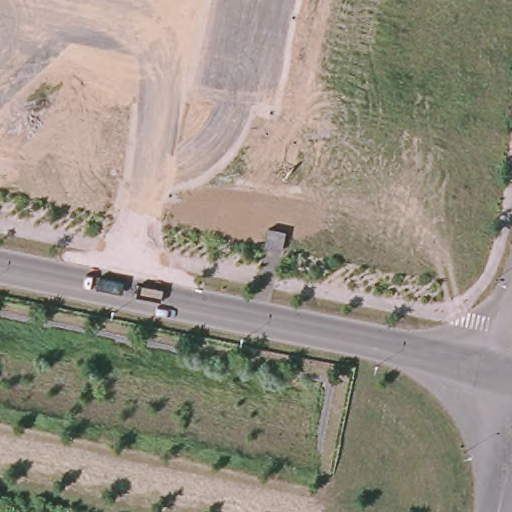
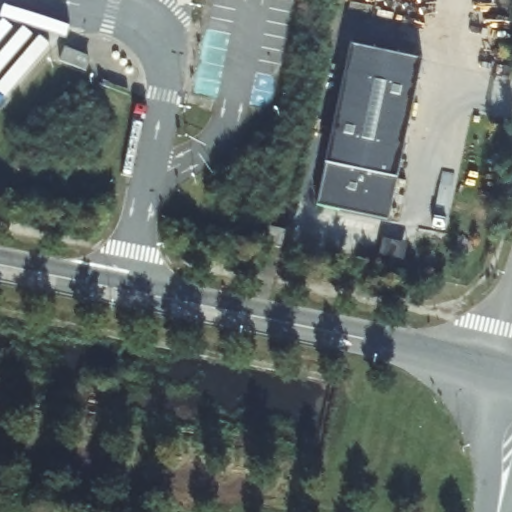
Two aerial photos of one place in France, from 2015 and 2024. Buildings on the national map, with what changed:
new [(351,46),(423,61),(389,222),(316,207),(351,46)]

